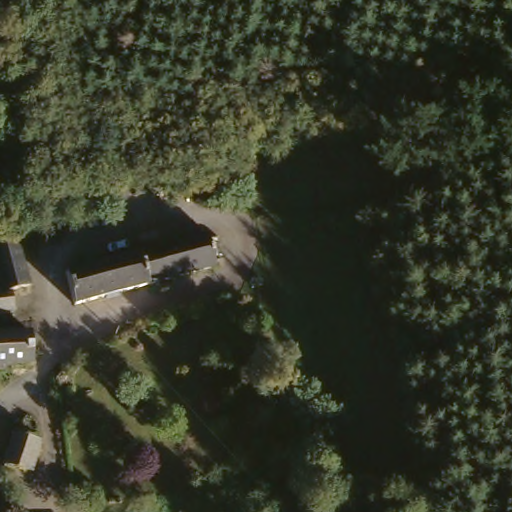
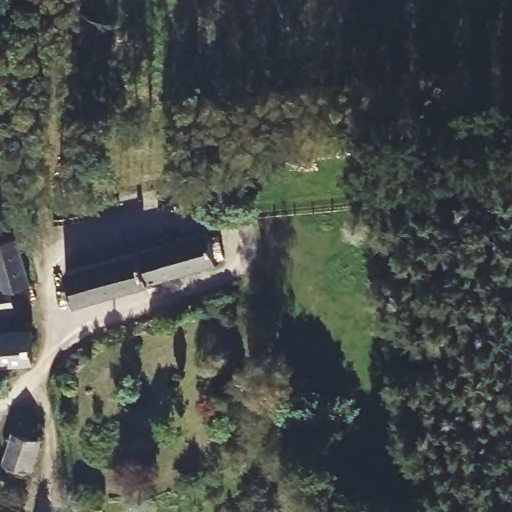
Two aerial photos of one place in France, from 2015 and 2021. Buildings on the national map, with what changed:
unchanged [(155,280),(148,248),(204,231),(214,261),(182,272),(155,280)]
unchanged [(23,290),(6,291),(0,255),(0,242),(14,239),(23,290)]
unchanged [(155,280),(81,304),(71,271),(148,248),(155,280)]
unchanged [(6,314),(0,314),(0,291),(6,291),(6,314)]
unchanged [(11,355),(12,365),(0,366),(0,332),(31,329),(33,354),(11,355)]
unchanged [(0,458),(10,429),(39,438),(29,471),(1,463),(0,461),(0,458)]

